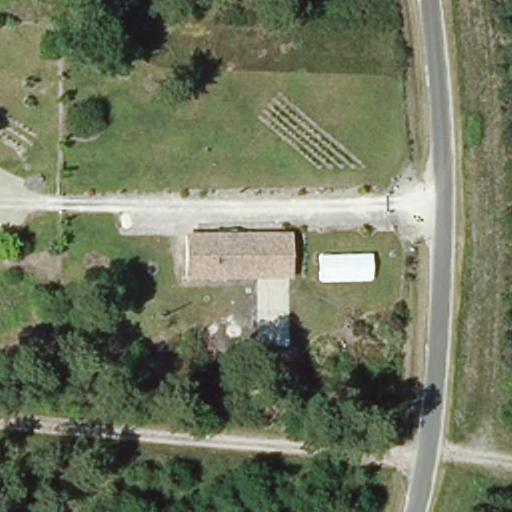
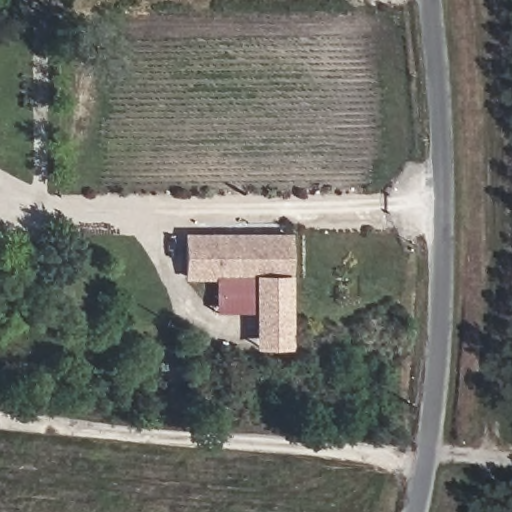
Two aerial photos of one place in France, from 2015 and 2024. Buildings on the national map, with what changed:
unchanged [(293,235),(292,280),(187,279),(187,234),(293,235)]
new [(255,280),(255,312),(216,312),(214,279),(255,280)]
new [(292,347),(255,347),(255,280),(292,280),(292,347)]

